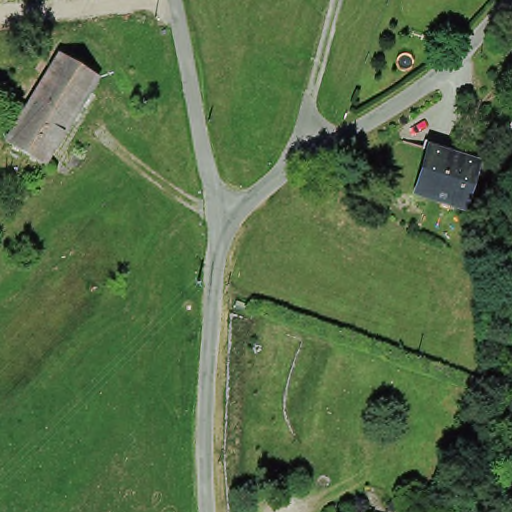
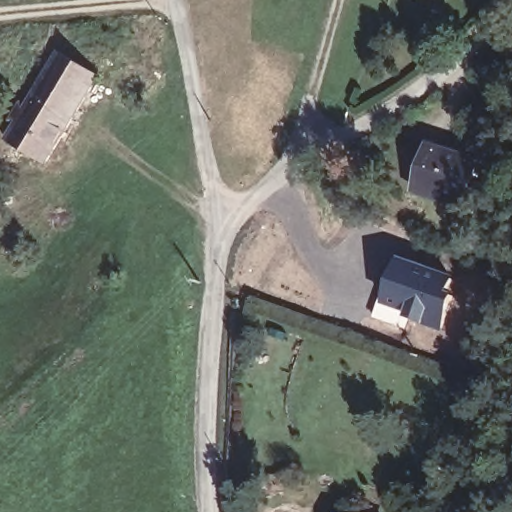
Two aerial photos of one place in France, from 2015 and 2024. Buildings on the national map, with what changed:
unchanged [(65,52),(105,77),(77,120),(39,94),(65,52)]
unchanged [(49,164),(10,139),(20,123),(12,118),(24,100),(32,103),(39,94),(77,120),(49,164)]
unchanged [(485,208),(437,193),(452,150),(454,143),(485,151),(482,159),(498,164),(485,208)]
new [(457,278),(451,295),(455,297),(444,329),(382,304),(399,255),(457,278)]

